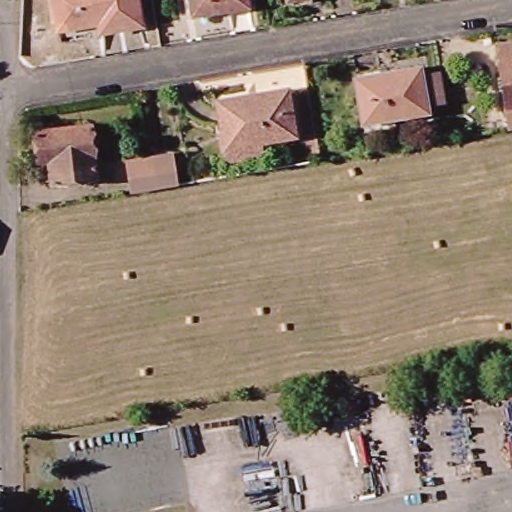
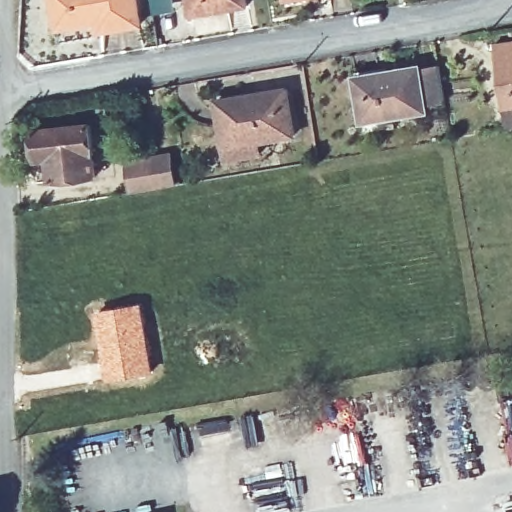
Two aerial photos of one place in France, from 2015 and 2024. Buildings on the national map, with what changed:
unchanged [(52,0),(136,0),(140,27),(99,34),(97,24),(57,31),(52,0)]
unchanged [(245,8),(192,17),(190,0),(244,0),(245,8)]
unchanged [(286,0),(295,0),(286,2),(286,0)]
unchanged [(512,112),(505,113),(494,47),(512,44),(512,112)]
unchanged [(380,79),(380,76),(418,69),(426,113),(385,121),(362,124),(355,83),(380,79)]
unchanged [(221,156),(212,97),(280,86),(288,132),(252,138),(255,150),(221,156)]
unchanged [(50,183),(48,162),(39,162),(36,132),(89,127),(94,178),(50,183)]
unchanged [(128,165),(153,160),(169,158),(173,187),(158,189),(133,194),(128,165)]
new [(142,303),(153,374),(107,382),(94,312),(142,303)]

